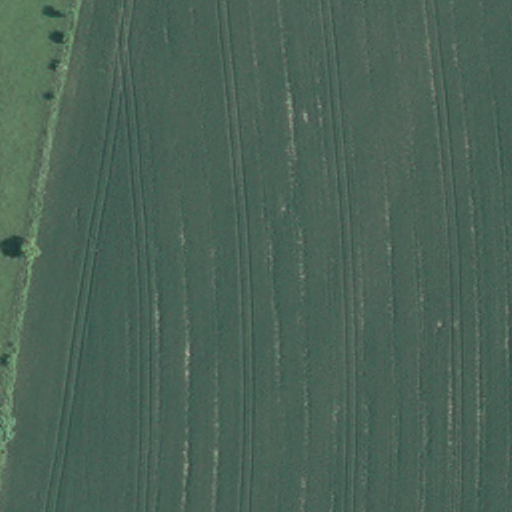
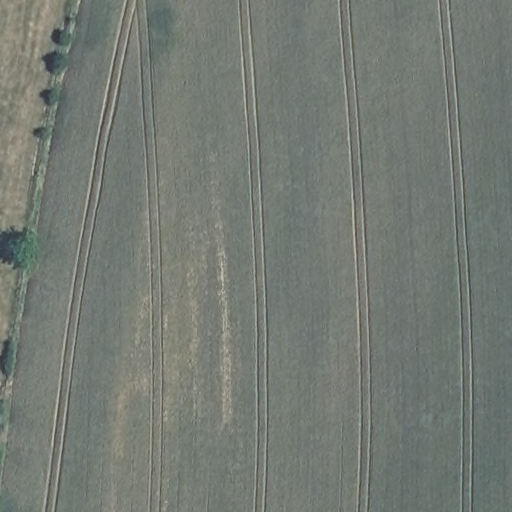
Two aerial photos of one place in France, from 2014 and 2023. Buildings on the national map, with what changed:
[]

